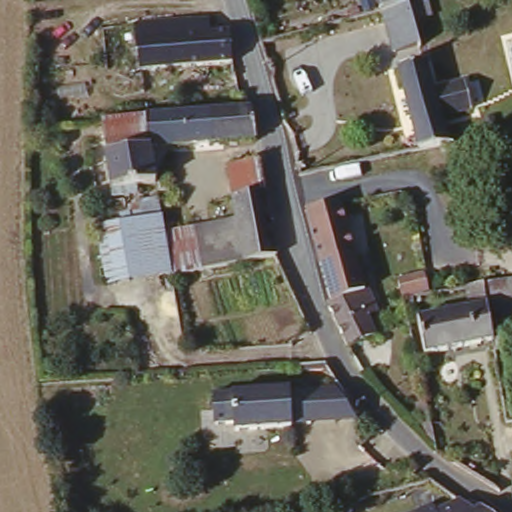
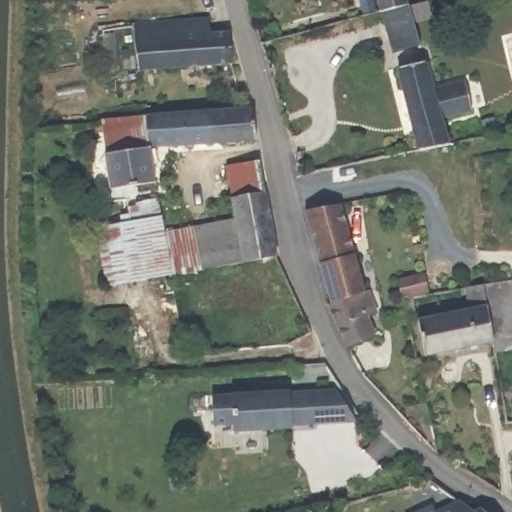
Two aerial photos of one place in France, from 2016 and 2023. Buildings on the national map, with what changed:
unchanged [(407,10),(398,12),(395,0),(425,0),(426,5),(407,10)]
unchanged [(436,40),(408,48),(398,12),(407,10),(426,5),(436,40)]
unchanged [(232,64),(136,70),(130,24),(206,17),(208,33),(229,32),(232,64)]
unchanged [(480,76),(486,104),(456,112),(464,140),(436,147),(413,64),(421,62),(441,57),(449,85),(480,76)]
unchanged [(246,102),(252,136),(208,139),(146,145),(143,145),(139,112),(242,102),(246,102)]
unchanged [(139,112),(143,145),(100,151),(95,115),(139,112)]
unchanged [(108,193),(108,185),(106,185),(100,151),(143,145),(146,145),(151,179),(124,183),(124,191),(108,193)]
unchanged [(169,277),(164,241),(159,209),(179,207),(183,230),(235,222),(226,168),(261,162),(274,239),(276,257),(169,277)]
unchanged [(164,241),(169,277),(105,286),(98,227),(129,222),(128,215),(135,214),(146,212),(145,200),(158,197),(159,209),(164,241)]
unchanged [(304,212),(337,205),(364,295),(331,307),(304,212)]
unchanged [(395,277),(434,267),(444,301),(407,315),(395,277)]
unchanged [(512,284),(512,340),(495,343),(486,287),(512,284)]
unchanged [(482,287),(492,346),(424,355),(418,319),(469,310),(465,291),(482,287)]
unchanged [(354,297),(368,294),(378,313),(368,317),(377,337),(351,348),(331,307),(336,305),(354,297)]
unchanged [(209,393),(333,388),(354,420),(235,432),(232,425),(213,426),(209,393)]
unchanged [(468,512),(436,512),(457,502),(468,512)]
unchanged [(430,508),(432,512),(422,512),(430,508)]
unchanged [(479,511),(481,512),(475,512),(479,511)]

